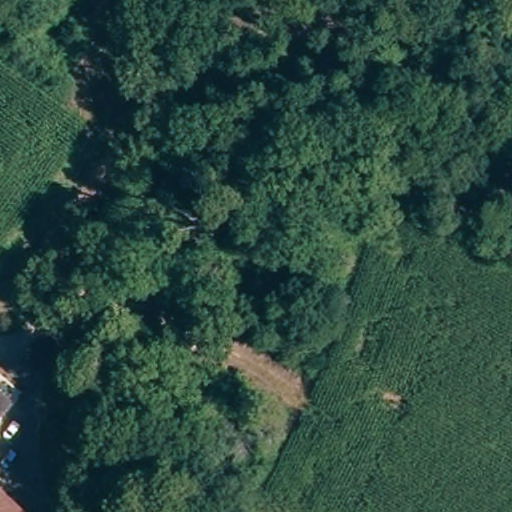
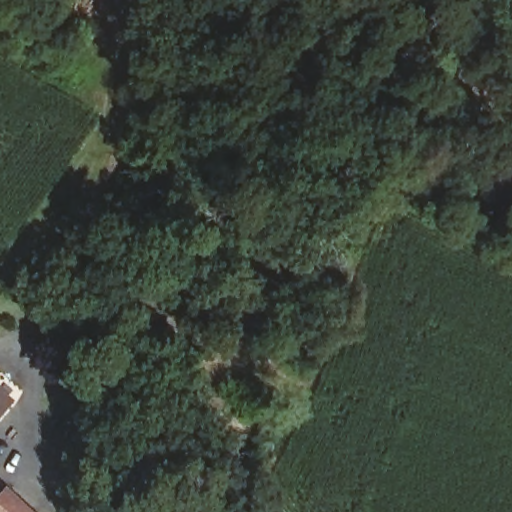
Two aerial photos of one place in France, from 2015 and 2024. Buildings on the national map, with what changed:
unchanged [(7,403),(0,411),(0,397),(7,403)]
unchanged [(20,512),(0,512),(0,496),(20,512)]

